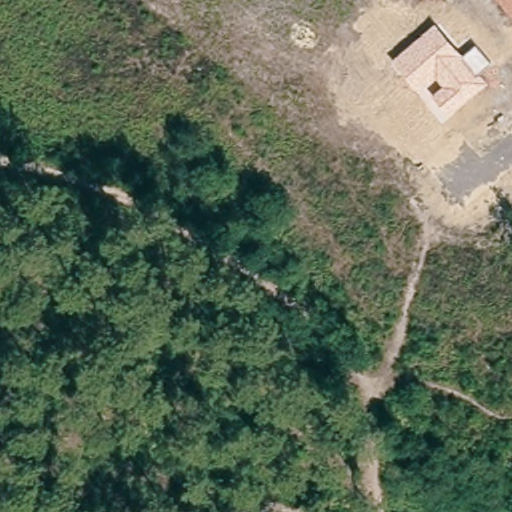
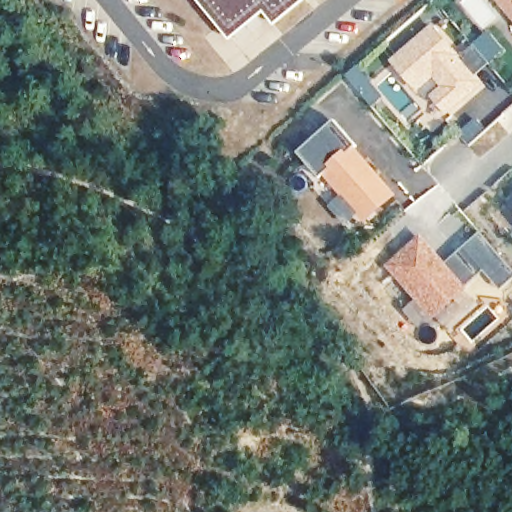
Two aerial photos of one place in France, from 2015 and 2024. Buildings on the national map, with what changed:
new [(277,22),(268,12),(234,39),(201,0),(304,0),(277,22)]
unchanged [(497,0),(512,0),(512,18),(497,0)]
unchanged [(462,55),(476,45),(491,62),(479,74),(487,83),(447,114),(431,96),(442,86),(436,77),(419,90),(393,60),(435,24),(462,55)]
new [(367,218),(363,213),(329,174),(322,180),(300,154),(333,126),(389,190),(394,196),(367,218)]
new [(386,266),(423,235),(446,263),(481,232),(512,269),(512,277),(500,289),(483,270),(465,286),(467,288),(432,318),(386,266)]

